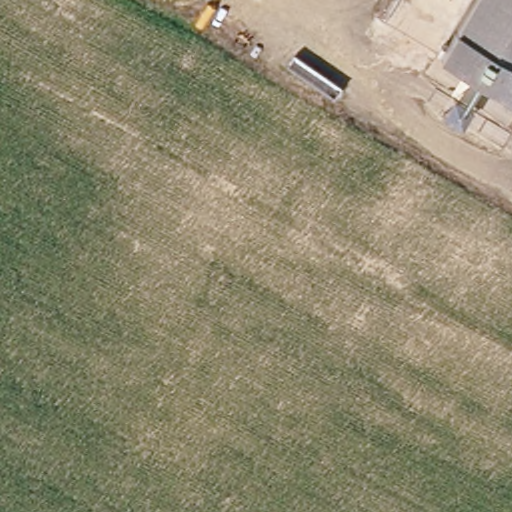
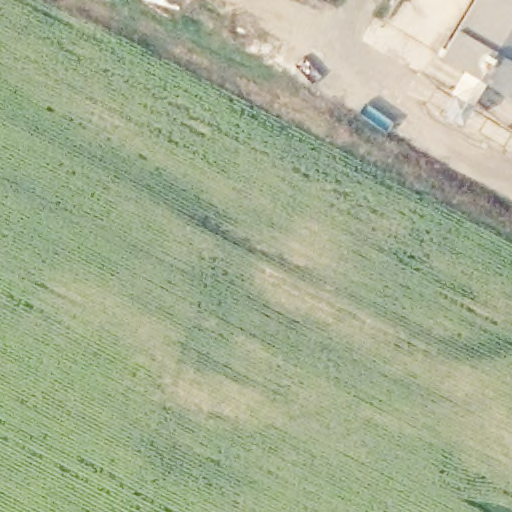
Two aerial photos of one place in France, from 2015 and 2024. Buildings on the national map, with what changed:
unchanged [(512,106),(443,65),(482,0),(512,0),(512,106)]

